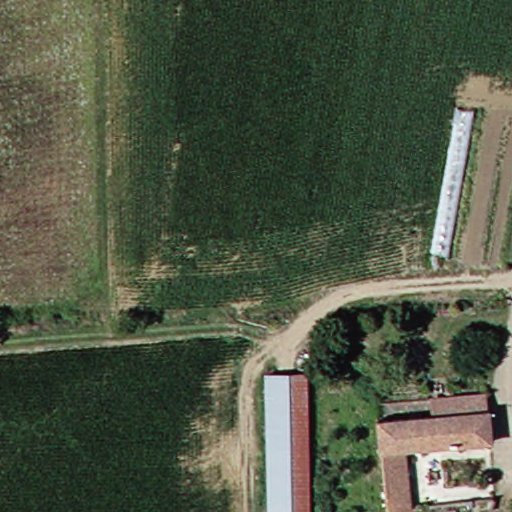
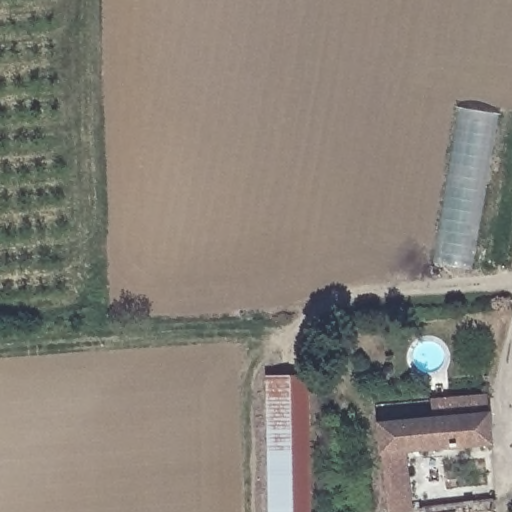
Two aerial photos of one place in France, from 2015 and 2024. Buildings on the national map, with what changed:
new [(471,271),(433,266),(459,109),(498,115),(471,271)]
unchanged [(290,381),(298,512),(257,512),(250,382),(290,381)]
unchanged [(401,512),(374,512),(371,460),(368,423),(424,419),(422,402),(480,396),(481,415),(483,447),(402,454),(401,512)]
unchanged [(512,509),(512,512),(508,512),(509,508),(512,509)]

